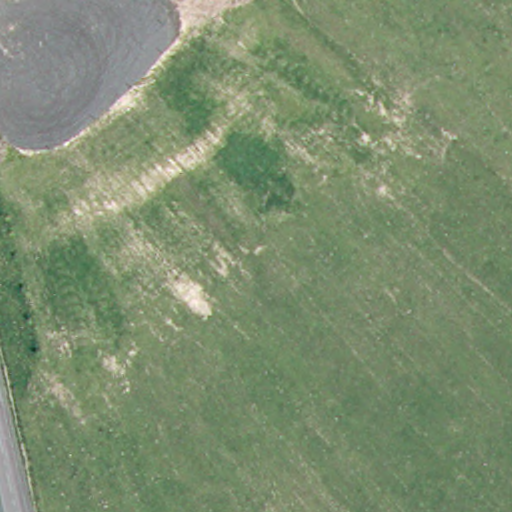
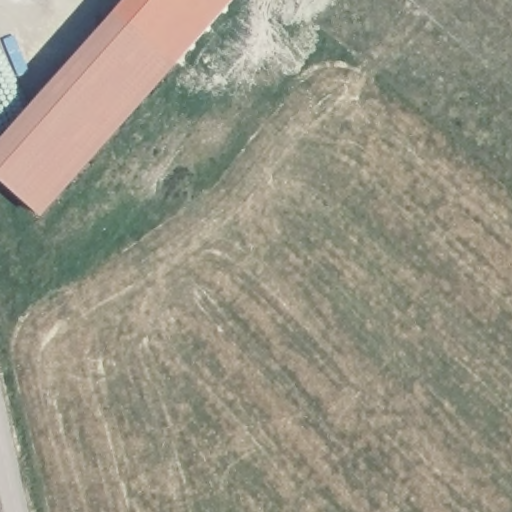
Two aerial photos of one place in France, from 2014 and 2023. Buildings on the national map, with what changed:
new [(177,63),(43,216),(0,180),(0,139),(115,9),(177,63)]

